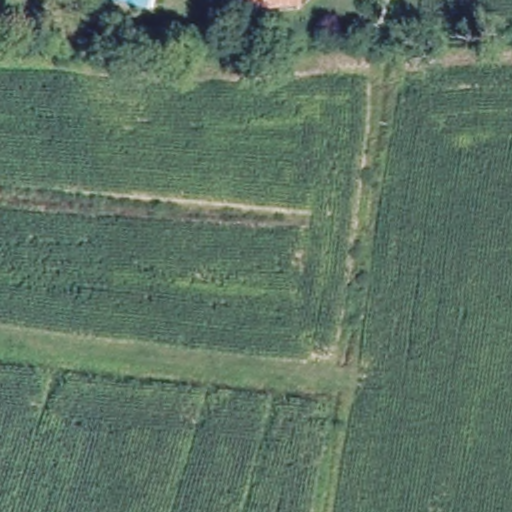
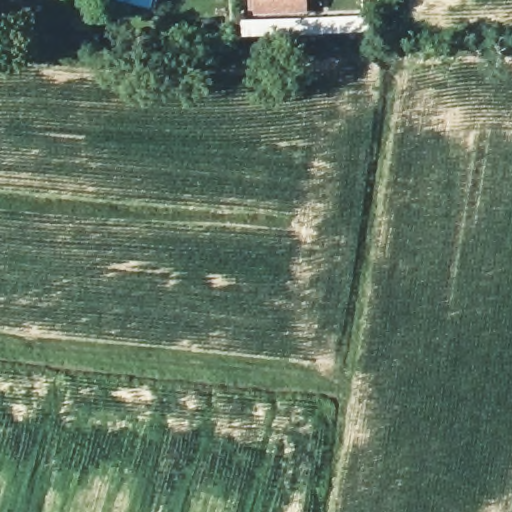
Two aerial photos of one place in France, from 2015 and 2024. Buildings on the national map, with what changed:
unchanged [(254,0),(300,0),(300,6),(254,9),(254,0)]

